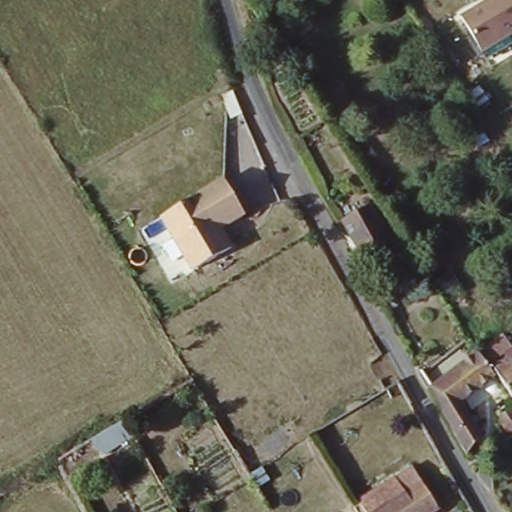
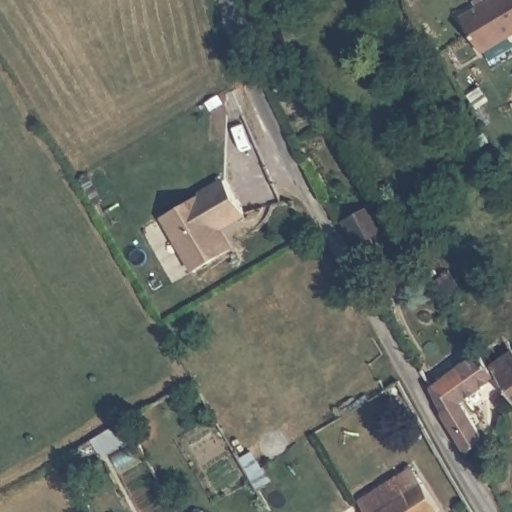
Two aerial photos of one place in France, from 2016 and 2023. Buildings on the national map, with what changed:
unchanged [(512,0),(512,36),(482,55),(462,19),(494,0),(512,0)]
unchanged [(246,216),(225,230),(236,249),(192,274),(159,217),(225,178),(246,216)]
unchanged [(362,262),(339,226),(372,205),(394,243),(362,262)]
unchanged [(495,381),(478,356),(501,341),(512,356),(512,406),(495,381)]
unchanged [(461,401),(483,434),(464,459),(437,415),(443,411),(425,386),(432,383),(431,382),(477,354),(478,356),(495,381),(461,401)]
unchanged [(512,415),(512,436),(506,440),(496,427),(500,417),(510,412),(512,415)]
unchanged [(106,424),(115,438),(87,455),(80,453),(74,444),(106,424)]
unchanged [(409,470),(437,509),(433,512),(358,512),(355,507),(409,470)]

